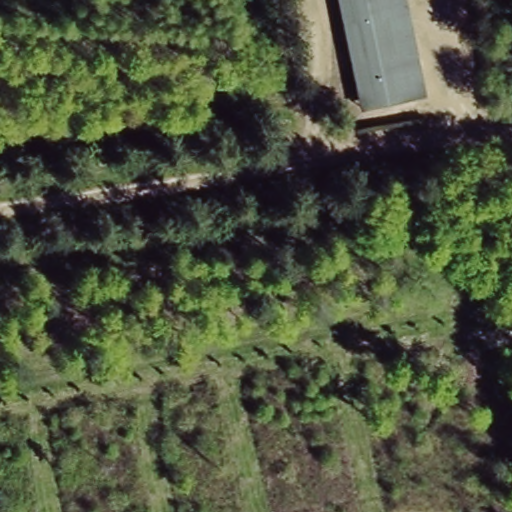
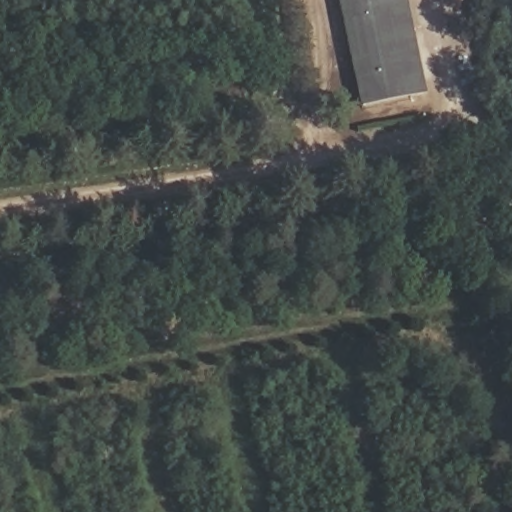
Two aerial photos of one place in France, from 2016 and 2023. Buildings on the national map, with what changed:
unchanged [(365,101),(351,38),(342,0),(404,0),(424,88),(365,101)]

